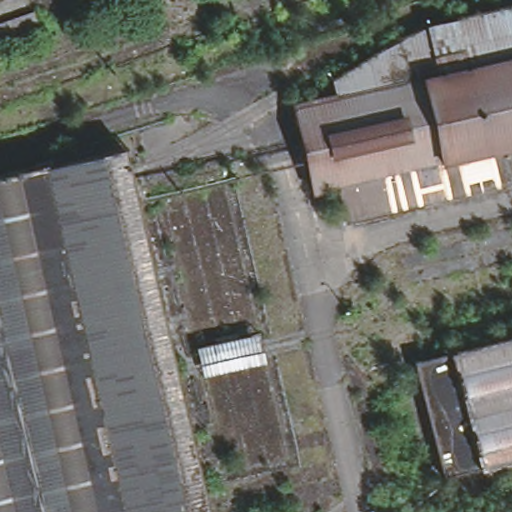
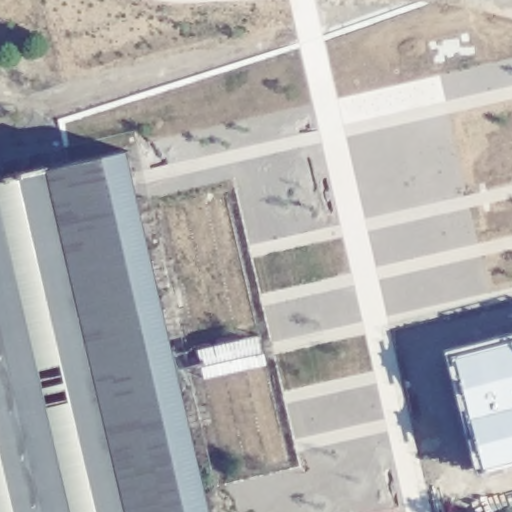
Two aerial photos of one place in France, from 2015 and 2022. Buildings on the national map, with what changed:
demolished [(327,89),(325,74),(408,25),(423,20),(512,0),(512,179),(443,195),(341,219),(336,185),(307,190),(285,102),(327,89)]
unchanged [(108,137),(199,512),(118,512),(32,155),(108,137)]
unchanged [(32,155),(118,512),(8,512),(0,477),(0,163),(32,155)]
unchanged [(417,353),(512,330),(512,456),(445,472),(417,353)]
unchanged [(8,512),(0,512),(0,477),(8,512)]

